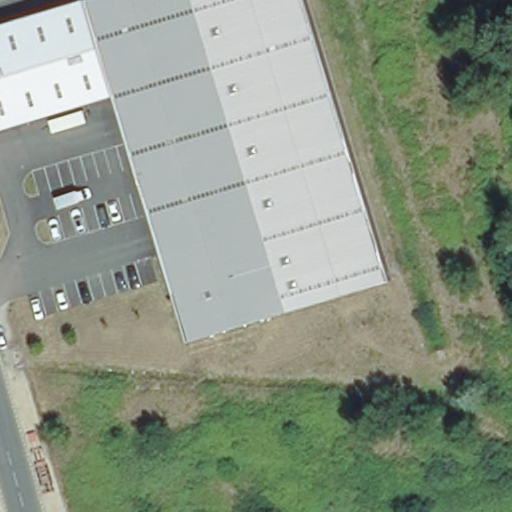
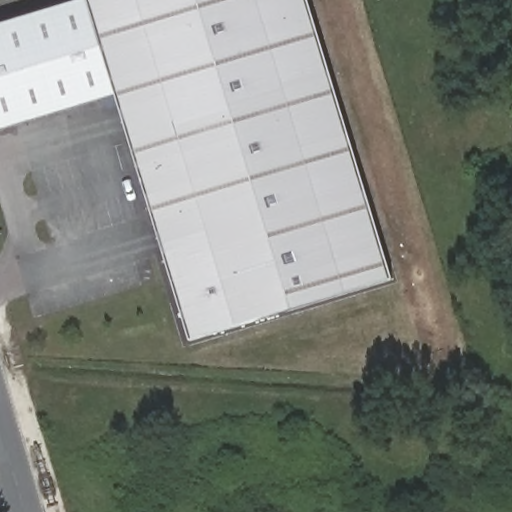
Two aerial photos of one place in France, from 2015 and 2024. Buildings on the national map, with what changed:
unchanged [(83,0),(88,0),(115,96),(0,132),(0,26),(83,0)]
unchanged [(184,343),(115,96),(88,0),(309,0),(389,286),(184,343)]

